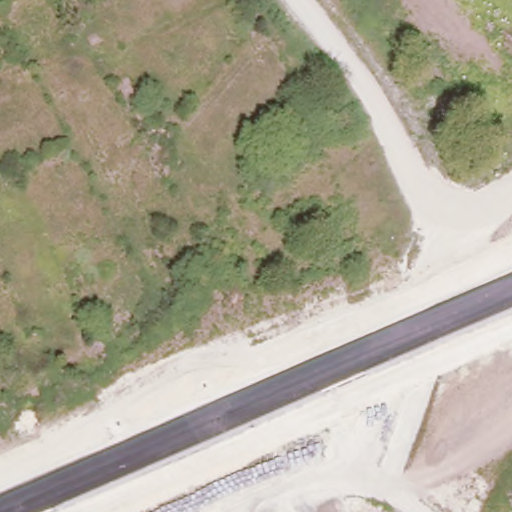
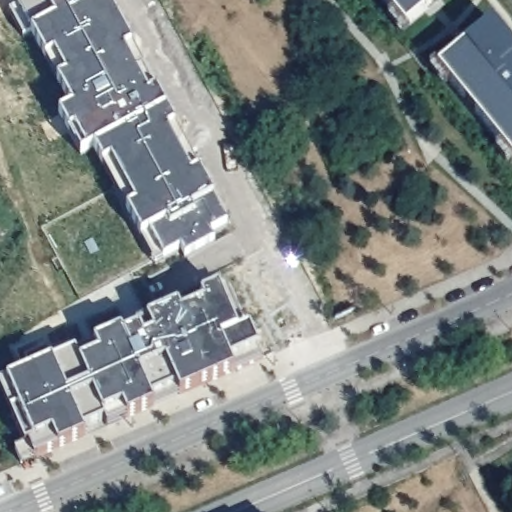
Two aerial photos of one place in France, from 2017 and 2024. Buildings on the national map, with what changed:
new [(112,162),(102,144),(90,151),(68,110),(80,103),(66,76),(55,54),(40,28),(32,32),(19,7),(27,3),(32,0),(119,0),(142,43),(153,65),(185,124),(208,168),(237,222),(220,232),(223,239),(193,254),(190,247),(172,256),(165,260),(150,234),(135,206),(112,162)]
new [(382,0),(439,0),(405,28),(382,0)]
new [(491,23),(512,49),(512,159),(438,67),(491,23)]
demolished [(162,248),(169,261),(147,271),(140,256),(162,248)]
demolished [(497,274),(483,310),(457,299),(470,265),(497,274)]
new [(21,437),(10,412),(18,408),(7,382),(52,362),(50,355),(68,347),(72,354),(76,352),(95,344),(122,332),(124,336),(139,329),(137,324),(148,320),(179,307),(182,314),(205,304),(202,297),(220,289),(227,286),(246,329),(251,328),(265,359),(180,396),(155,407),(127,419),(122,408),(103,417),(105,421),(83,431),(86,437),(35,459),(22,465),(15,451),(28,445),(25,446),(21,437)]
demolished [(138,317),(126,328),(115,319),(126,307),(138,317)]
demolished [(85,374),(68,380),(62,363),(76,356),(85,374)]
new [(127,419),(107,428),(103,417),(122,408),(127,419)]

